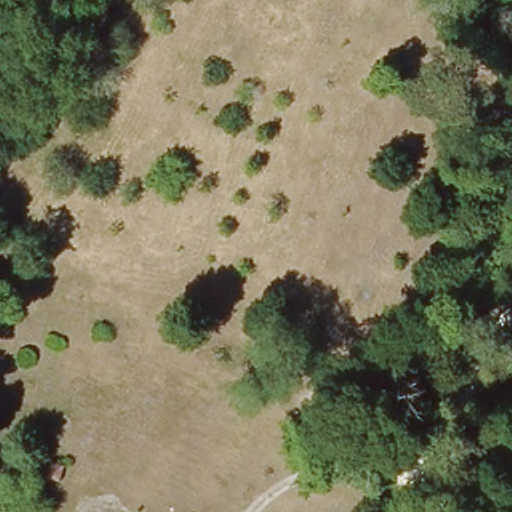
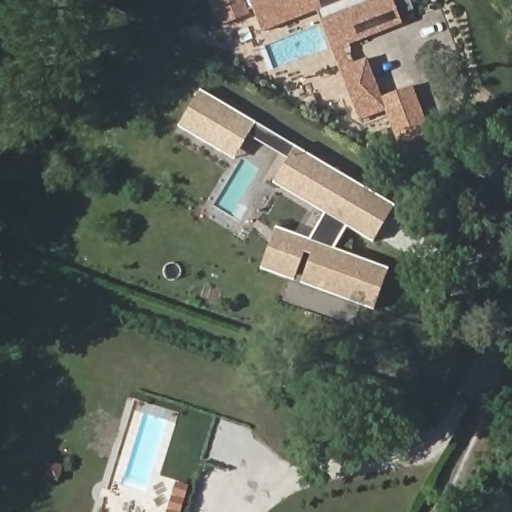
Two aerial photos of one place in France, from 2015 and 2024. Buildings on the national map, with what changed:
new [(317,11),(309,15),(307,10),(285,19),(287,23),(262,32),(254,10),(249,11),(250,15),(224,25),(214,0),(394,0),(403,24),(356,43),(333,52),(317,11)]
new [(367,59),(381,97),(411,85),(435,149),(416,156),(400,145),(385,109),(360,120),(338,69),(367,59)]
new [(256,124),(235,160),(179,126),(200,90),(256,124)]
new [(266,255),(270,256),(280,229),(310,240),(325,213),(316,207),(317,204),(280,181),(289,166),(286,164),(296,147),(339,172),(337,176),(372,197),(375,194),(394,206),(372,241),(347,225),(330,252),(364,264),(365,260),(388,268),(375,303),(303,277),(312,254),(303,250),(295,274),(287,271),(285,276),(261,268),(266,255)]
unchanged [(65,464),(60,480),(46,476),(50,460),(65,464)]

